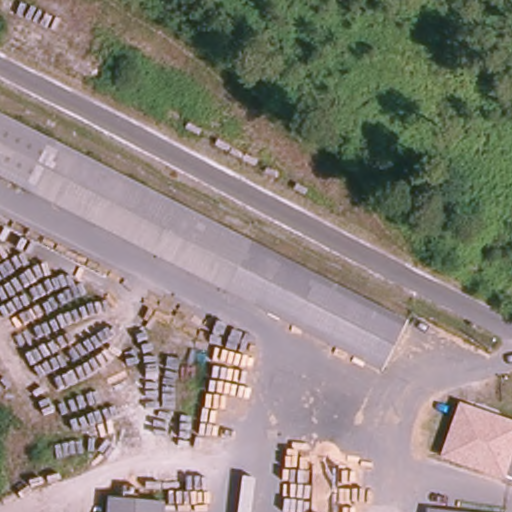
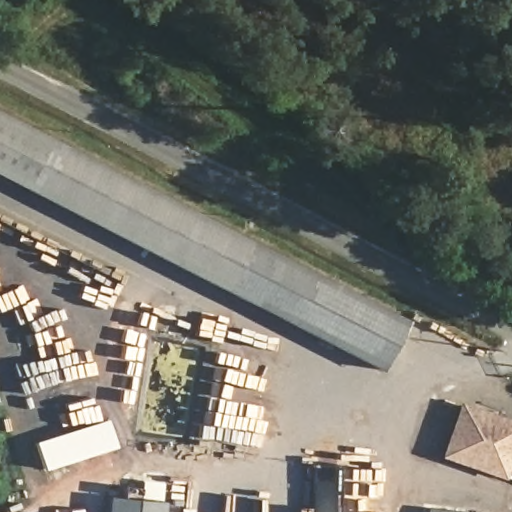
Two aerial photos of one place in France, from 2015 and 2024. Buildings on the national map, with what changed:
unchanged [(16,184),(0,175),(0,115),(41,136),(16,184)]
unchanged [(270,255),(398,320),(396,325),(380,356),(374,367),(364,362),(216,286),(182,269),(16,184),(41,136),(240,240),(270,255)]
unchanged [(457,401),(512,420),(512,480),(440,457),(457,401)]
new [(44,470),(35,442),(106,420),(114,448),(44,470)]
demolished [(431,431),(428,457),(415,455),(417,430),(431,431)]
unchanged [(163,503),(162,512),(108,512),(109,497),(163,503)]
unchanged [(437,512),(428,512),(428,511),(437,512)]

